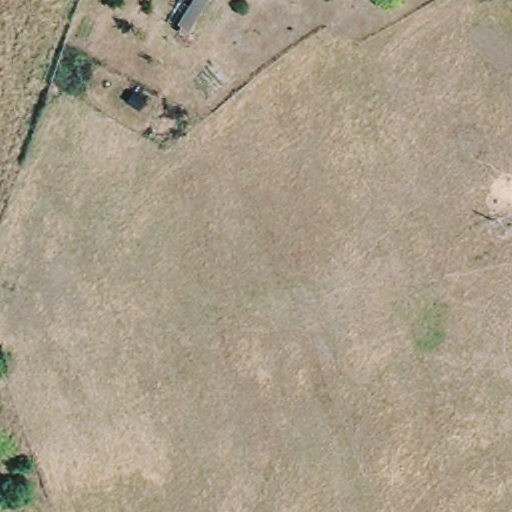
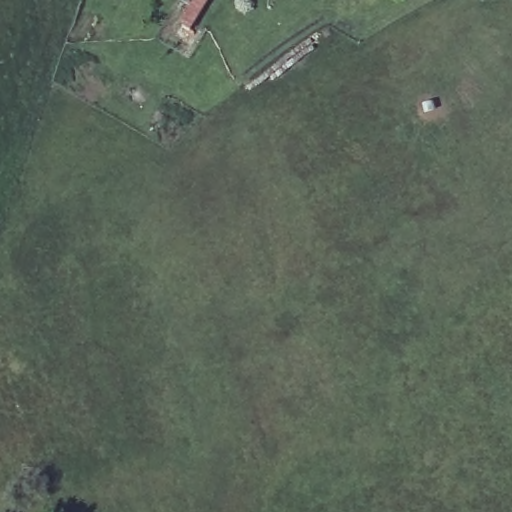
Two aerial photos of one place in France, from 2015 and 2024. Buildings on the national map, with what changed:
unchanged [(194,32),(183,21),(196,0),(212,0),(194,32)]

